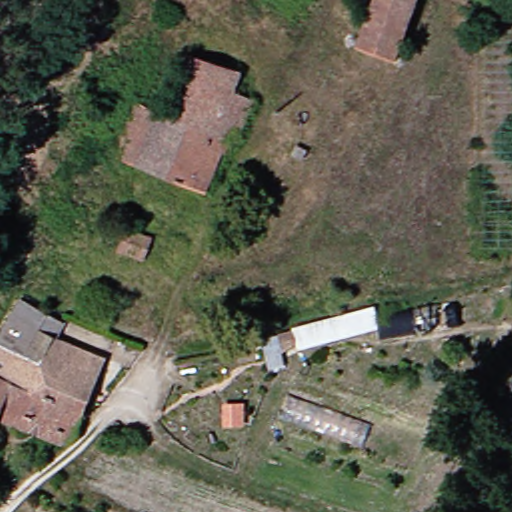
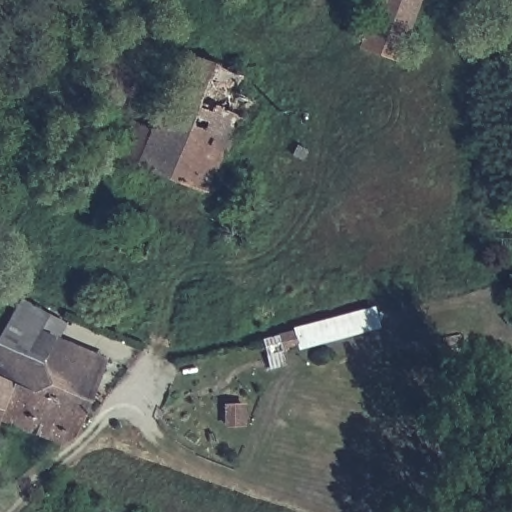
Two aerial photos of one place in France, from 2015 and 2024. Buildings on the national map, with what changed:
unchanged [(351,45),(364,0),(404,0),(387,59),(351,45)]
unchanged [(225,89),(247,98),(231,135),(225,133),(198,190),(126,161),(106,153),(124,101),(148,110),(154,111),(176,51),(234,70),(225,89)]
unchanged [(160,262),(92,235),(99,214),(168,238),(160,262)]
unchanged [(265,367),(258,333),(366,307),(368,314),(383,311),(389,334),(369,337),(367,327),(274,349),(277,364),(265,367)]
unchanged [(60,449),(0,421),(0,365),(5,352),(0,350),(15,314),(58,334),(53,353),(99,373),(78,423),(65,452),(60,449)]
unchanged [(0,365),(0,350),(5,352),(0,365)]

